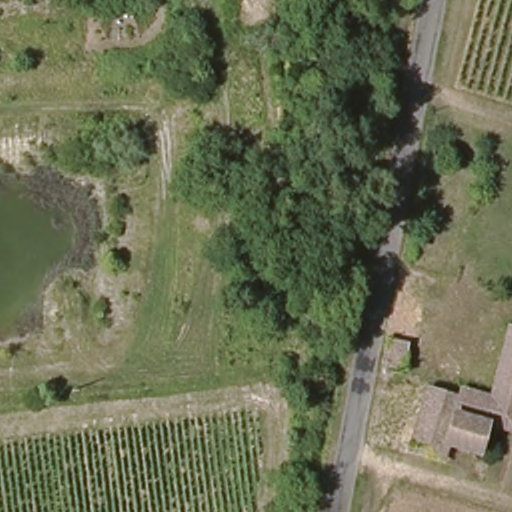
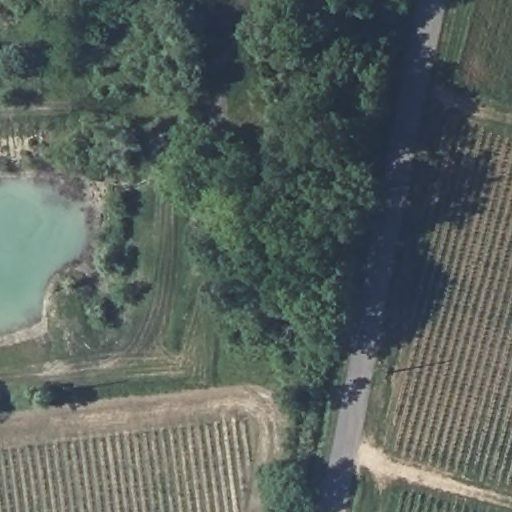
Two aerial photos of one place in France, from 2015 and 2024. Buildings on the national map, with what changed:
demolished [(485,463),(451,454),(441,465),(401,452),(419,380),(451,389),(452,382),(486,390),(506,322),(512,324),(512,437),(494,431),(485,463)]

